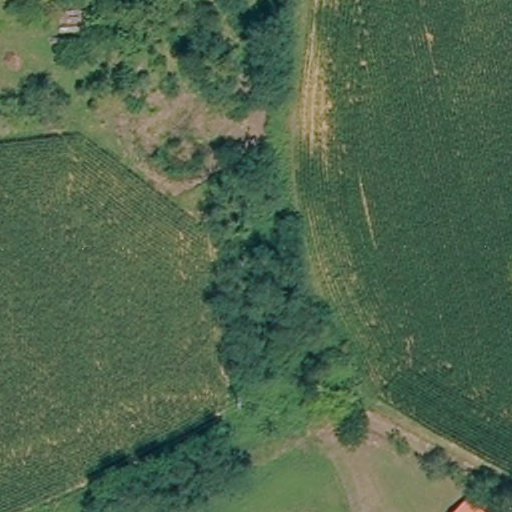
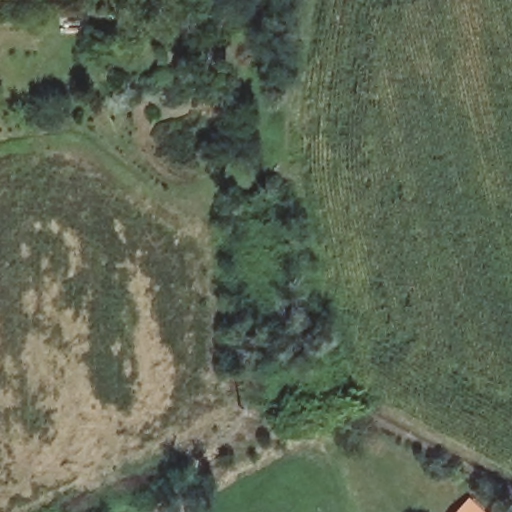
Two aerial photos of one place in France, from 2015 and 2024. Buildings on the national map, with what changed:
unchanged [(481,512),(456,512),(467,499),(481,512)]

